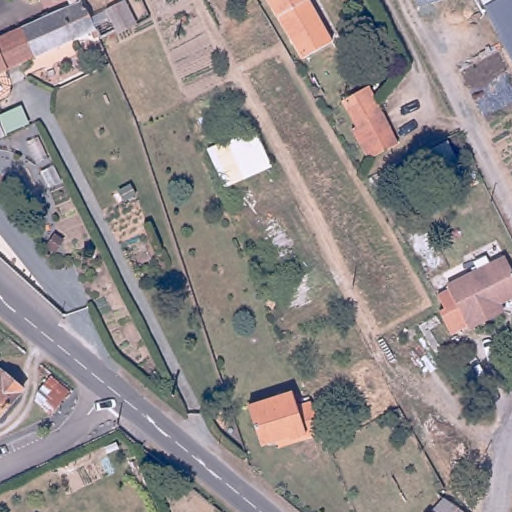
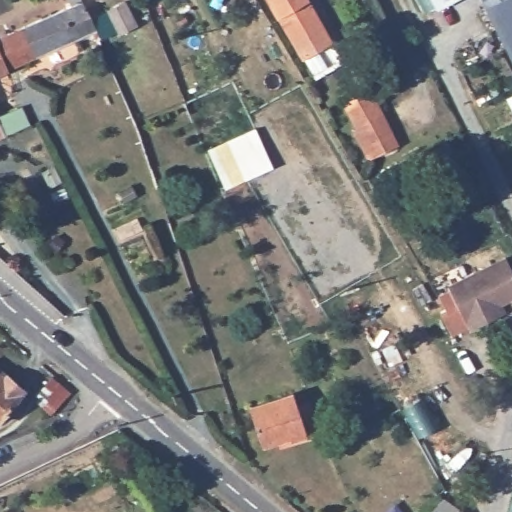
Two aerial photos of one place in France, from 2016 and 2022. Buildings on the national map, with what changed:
unchanged [(96,34),(37,59),(20,66),(0,73),(0,38),(74,6),(71,0),(85,0),(88,6),(102,36),(97,38),(96,34)]
unchanged [(107,0),(111,8),(127,0),(130,0),(141,25),(122,35),(121,31),(104,39),(102,36),(88,6),(103,0),(107,0)]
unchanged [(274,0),(312,0),(335,42),(305,58),(274,0)]
unchanged [(415,0),(438,0),(417,6),(415,0)]
unchanged [(485,9),(480,0),(510,0),(512,5),(512,62),(485,9)]
unchanged [(510,0),(512,0),(512,5),(510,0)]
unchanged [(353,128),(358,125),(344,100),(371,84),(401,143),(370,159),(353,128)]
unchanged [(0,126),(0,109),(7,123),(0,126)]
unchanged [(254,129),(270,166),(224,186),(207,148),(254,129)]
unchanged [(502,314),(475,327),(473,324),(456,333),(443,310),(446,309),(460,302),(451,286),(508,256),(512,264),(512,297),(503,302),(507,311),(502,314)]
unchanged [(6,374),(24,389),(0,416),(0,377),(3,379),(6,374)]
unchanged [(74,390),(52,414),(35,402),(55,375),(74,390)]
unchanged [(306,437),(305,433),(290,439),(288,435),(261,445),(247,406),(290,392),(295,407),(309,402),(322,432),(306,437)]
unchanged [(442,496),(464,512),(429,512),(442,496)]

